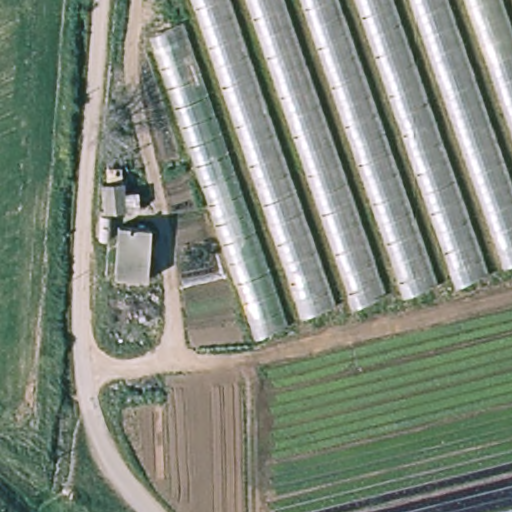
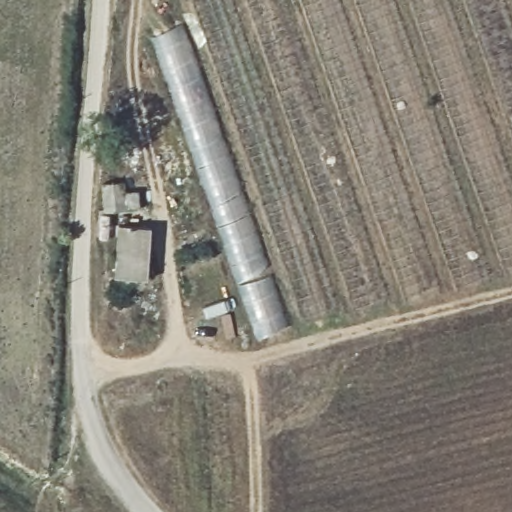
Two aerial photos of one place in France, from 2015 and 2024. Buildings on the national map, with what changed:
unchanged [(184,0),(512,0),(512,270),(254,343),(146,44),(190,18),(184,0)]
unchanged [(139,208),(104,211),(101,184),(123,182),(124,192),(137,191),(139,208)]
unchanged [(146,284),(115,282),(119,230),(150,233),(146,284)]

